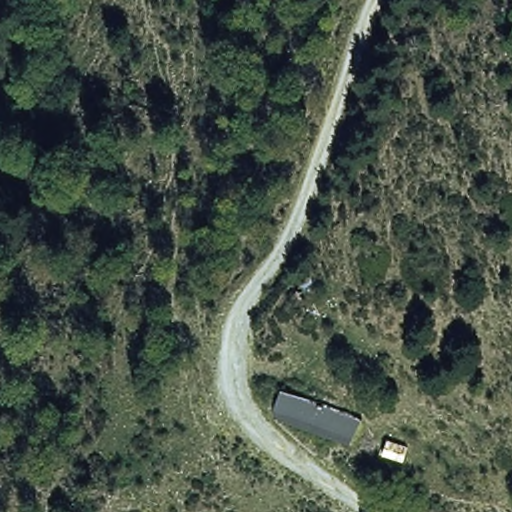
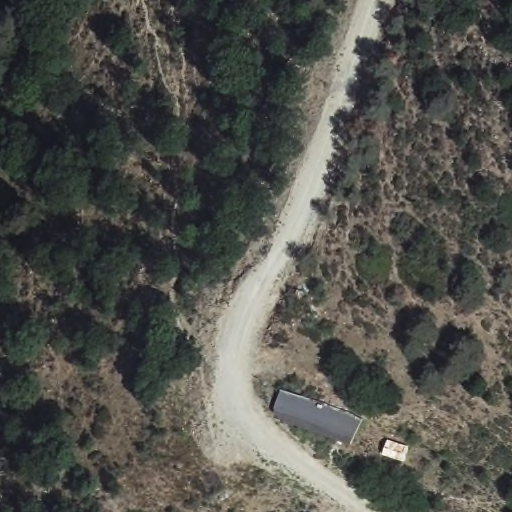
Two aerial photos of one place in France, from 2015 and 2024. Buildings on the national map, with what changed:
unchanged [(282,389),(361,416),(351,443),(272,416),(282,389)]
unchanged [(386,437),(410,443),(406,461),(381,455),(386,437)]

